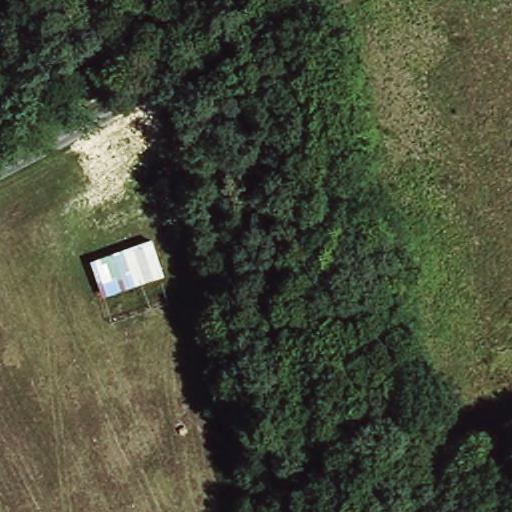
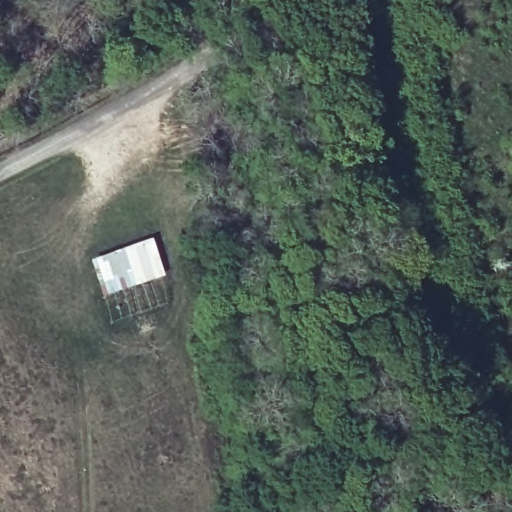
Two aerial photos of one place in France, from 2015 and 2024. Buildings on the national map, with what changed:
unchanged [(156,274),(99,294),(85,257),(147,237),(156,274)]

